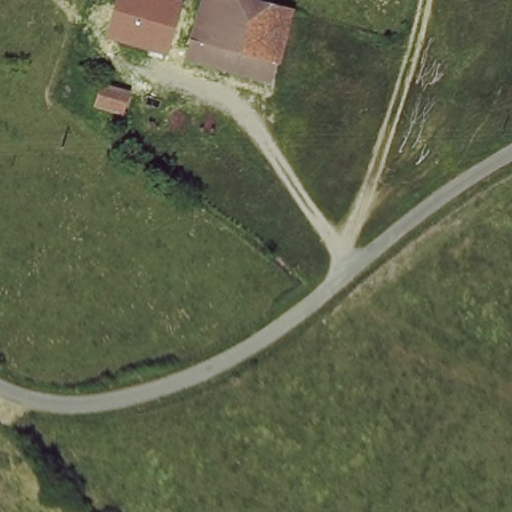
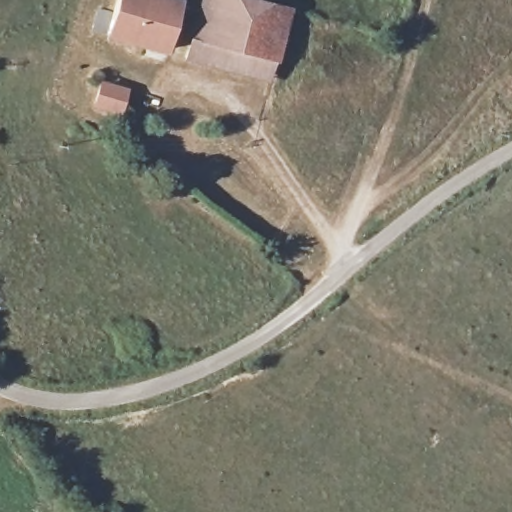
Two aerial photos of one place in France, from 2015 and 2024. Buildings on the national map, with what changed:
unchanged [(160,49),(107,32),(118,0),(175,0),(160,49)]
unchanged [(199,0),(252,0),(288,11),(275,57),(190,30),(199,0)]
unchanged [(267,82),(182,56),(190,30),(275,57),(267,82)]
unchanged [(130,98),(123,122),(95,112),(102,90),(130,98)]

